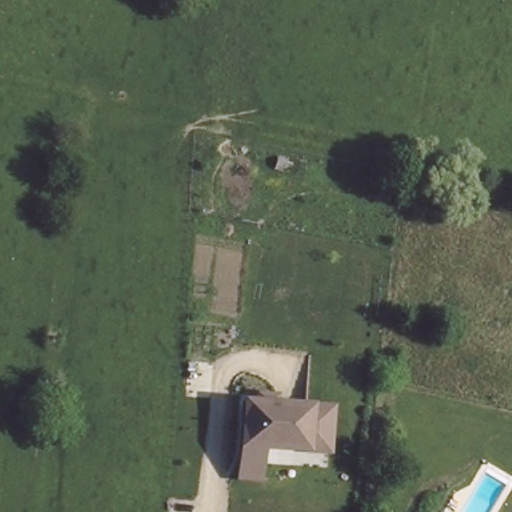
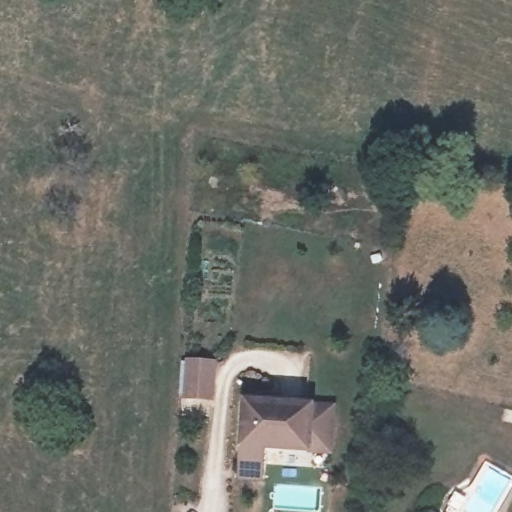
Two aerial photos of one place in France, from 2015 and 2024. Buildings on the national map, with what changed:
new [(182,357),(218,359),(215,401),(180,399),(182,357)]
unchanged [(312,453),(266,449),(264,479),(237,478),(242,397),(315,403),(312,453)]

